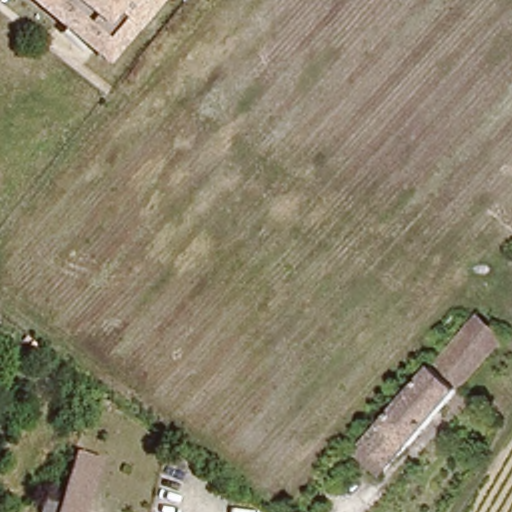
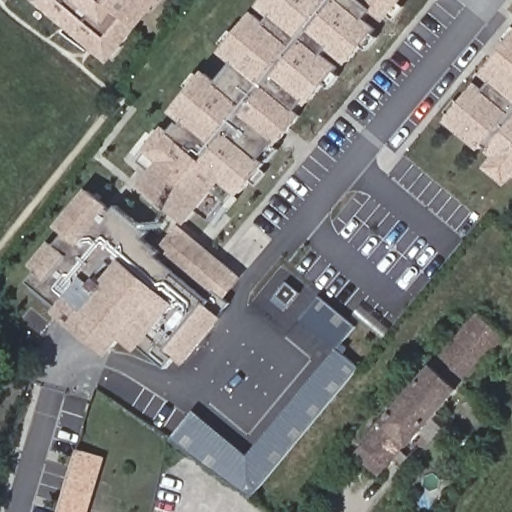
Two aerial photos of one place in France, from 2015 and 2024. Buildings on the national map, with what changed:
unchanged [(33,0),(161,0),(110,63),(33,0)]
new [(374,10),(368,19),(379,30),(351,64),(331,48),(326,55),(341,66),(310,104),(306,100),(298,110),(305,115),(281,144),(277,141),(261,161),(266,165),(241,195),(238,192),(211,221),(199,211),(190,223),(140,185),(159,163),(145,150),(166,126),(173,132),(182,122),(172,113),(205,71),(219,83),(233,65),(219,53),(254,12),(267,23),(271,18),(259,6),(264,0),(402,0),(386,21),(374,10)]
new [(507,185),(486,169),(493,159),(487,153),(490,151),(484,146),(480,151),(444,121),(476,82),(485,90),(491,83),(480,74),(512,36),(512,178),(507,185)]
new [(242,278),(224,298),(231,304),(222,317),(185,365),(177,358),(168,368),(141,347),(138,353),(122,340),(109,357),(54,311),(59,306),(30,281),(38,272),(30,265),(51,241),(58,246),(67,235),(56,227),(87,189),(114,212),(119,206),(149,233),(145,238),(160,253),(158,256),(166,263),(168,257),(166,255),(170,251),(163,245),(179,225),(242,278)]
new [(342,344),(349,350),(344,355),(359,367),(251,498),(183,448),(170,440),(196,410),(249,456),(336,350),(301,320),(320,296),(357,327),(342,344)]
unchanged [(365,457),(356,449),(366,438),(436,356),(478,309),(501,329),(460,377),(389,459),(380,470),(365,457)]
unchanged [(73,509),(61,507),(75,456),(100,464),(88,500),(84,512),(73,509)]

